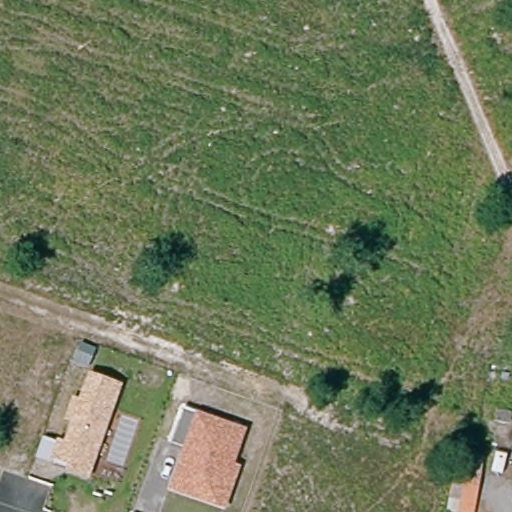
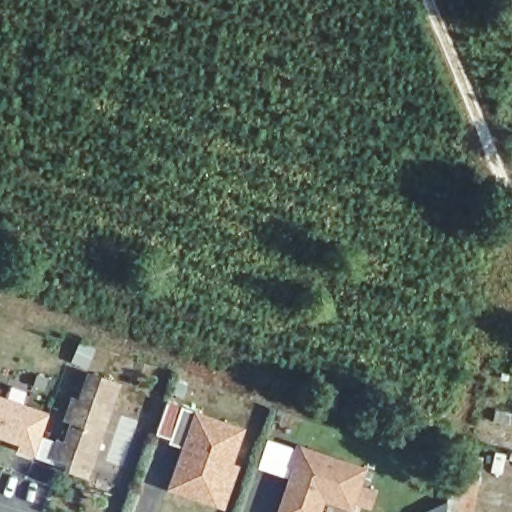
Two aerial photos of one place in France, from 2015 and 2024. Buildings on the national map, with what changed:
unchanged [(48,466),(55,442),(62,442),(68,425),(61,421),(70,397),(78,400),(88,372),(122,383),(89,478),(48,466)]
new [(35,405),(23,439),(0,431),(0,392),(35,405)]
unchanged [(181,447),(171,443),(182,410),(192,415),(194,411),(246,427),(234,465),(239,467),(226,509),(167,489),(181,447)]
new [(321,512),(277,512),(297,445),(368,467),(352,512),(324,503),(321,512)]
unchanged [(477,512),(452,512),(461,464),(484,470),(477,512)]

